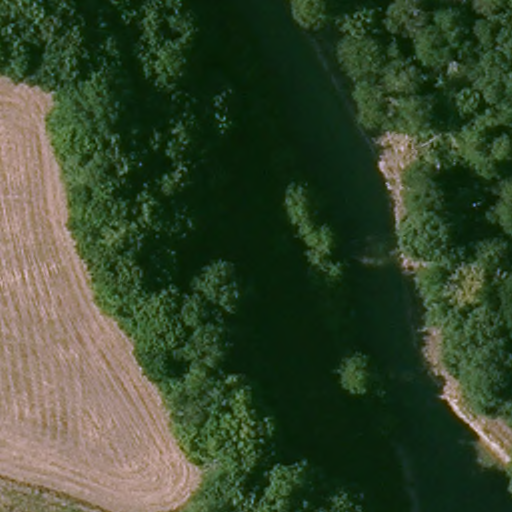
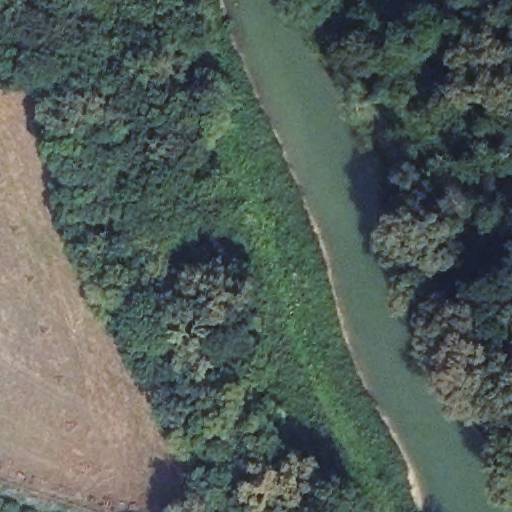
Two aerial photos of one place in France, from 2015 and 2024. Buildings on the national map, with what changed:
[]

